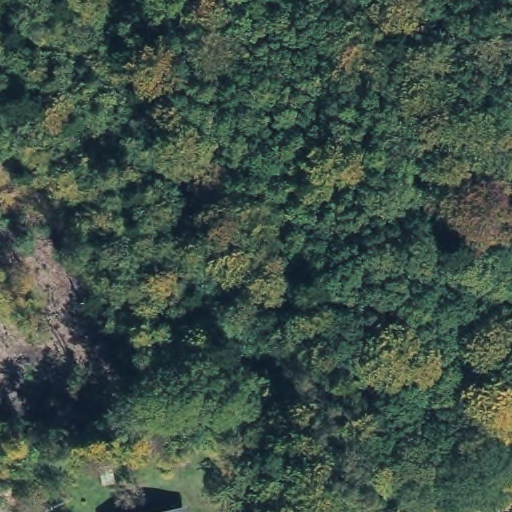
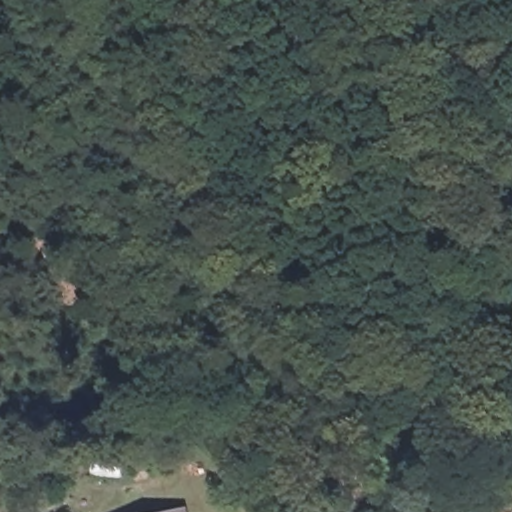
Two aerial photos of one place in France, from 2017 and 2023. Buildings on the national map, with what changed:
unchanged [(173,512),(150,512),(170,507),(173,512)]

